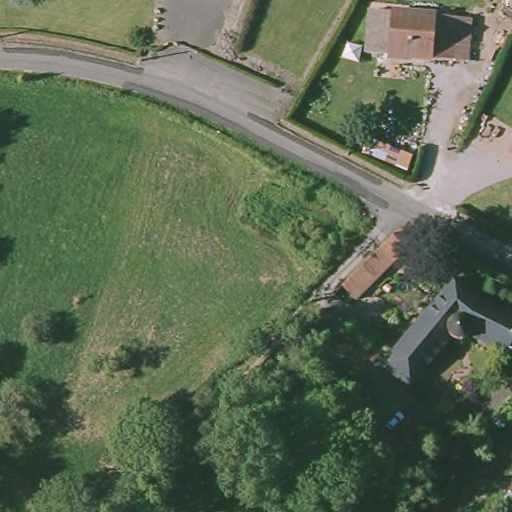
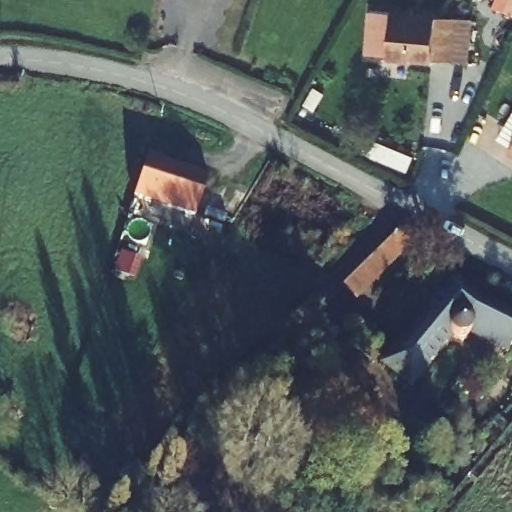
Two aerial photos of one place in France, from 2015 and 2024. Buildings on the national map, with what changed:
unchanged [(420,14),(455,16),(452,60),(432,58),(411,57),(410,59),(387,57),(389,37),(391,12),(420,14)]
unchanged [(511,151),(512,150),(512,152),(511,151)]
new [(164,158),(163,160),(209,175),(195,217),(134,196),(149,152),(164,158)]
unchanged [(397,236),(399,235),(400,235),(403,235),(417,243),(355,305),(342,291),(397,236)]
unchanged [(467,338),(463,340),(459,341),(455,340),(450,338),(410,387),(382,364),(455,278),(482,300),(512,316),(512,342),(507,353),(470,334),(467,338)]
unchanged [(362,354),(340,333),(353,319),(375,340),(375,341),(383,349),(370,362),(362,354)]

